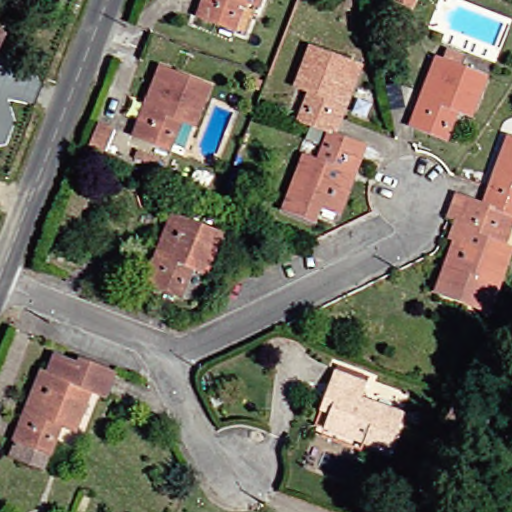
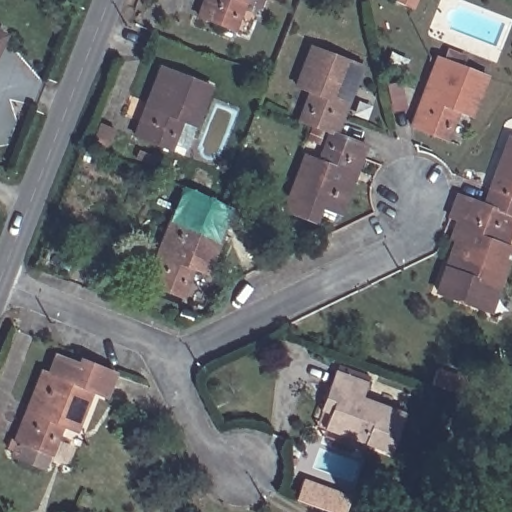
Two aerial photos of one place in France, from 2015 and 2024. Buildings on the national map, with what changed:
unchanged [(237,0),(222,31),(190,17),(197,0),(251,0),(249,5),(237,0)]
unchanged [(288,87),(280,83),(299,39),(343,59),(312,129),(276,114),(288,87)]
unchanged [(483,77),(466,115),(460,112),(445,143),(406,124),(438,55),(483,77)]
unchanged [(130,136),(163,64),(208,85),(177,151),(165,145),(162,151),(130,136)]
unchanged [(291,220),(265,208),(290,152),(300,157),(312,129),(345,142),(315,210),(298,203),(291,220)]
unchanged [(74,150),(84,131),(97,139),(88,157),(74,150)]
unchanged [(512,137),(512,216),(511,218),(505,216),(478,205),(509,136),(512,137)]
unchanged [(425,291),(435,270),(446,244),(440,241),(448,222),(442,220),(450,194),(478,205),(505,216),(493,242),(498,244),(505,247),(486,291),(477,312),(463,307),(425,291)]
unchanged [(215,235),(197,273),(185,267),(170,300),(140,286),(172,215),(215,235)]
unchanged [(8,443),(4,440),(37,371),(45,376),(56,355),(79,368),(84,358),(109,373),(96,399),(82,392),(62,432),(50,426),(35,458),(29,472),(1,456),(8,443)]
unchanged [(364,383),(357,399),(396,415),(380,452),(322,429),(328,415),(312,409),(322,385),(330,369),(364,383)]
new [(355,499),(349,512),(332,512),(299,499),(307,480),(355,499)]

